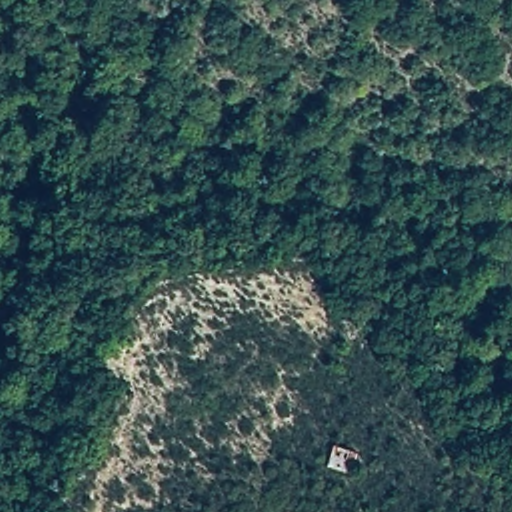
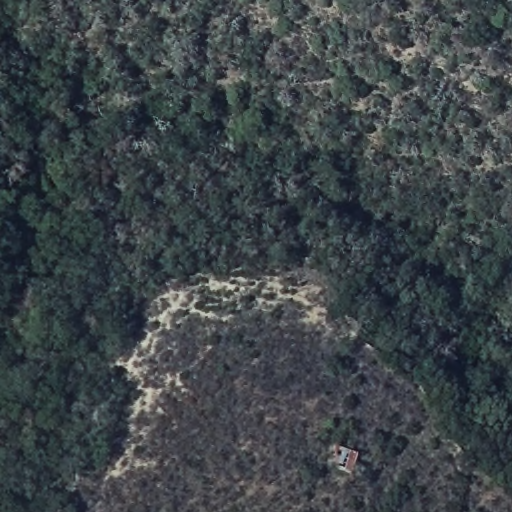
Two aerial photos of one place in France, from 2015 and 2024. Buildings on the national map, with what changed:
unchanged [(332,442),(355,445),(351,468),(326,464),(332,442)]

